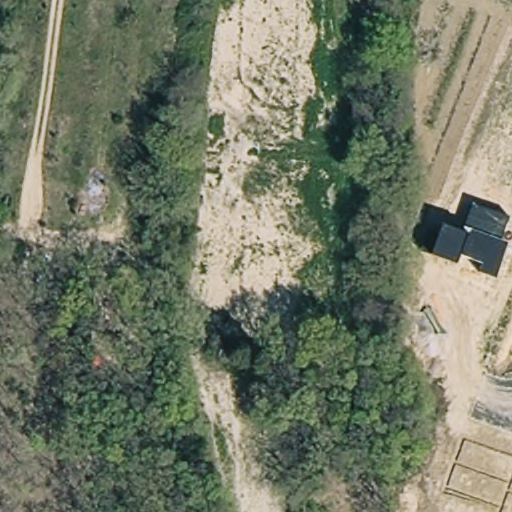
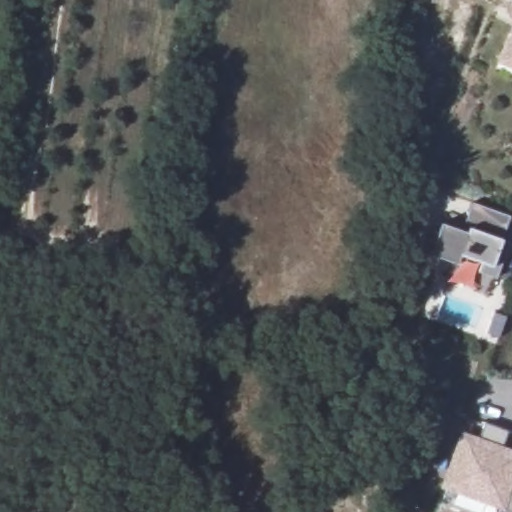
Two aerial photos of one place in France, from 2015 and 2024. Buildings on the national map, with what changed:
new [(495,64),(510,27),(512,28),(512,71),(495,64)]
unchanged [(510,221),(502,242),(510,245),(498,281),(480,275),(484,263),(462,252),(459,266),(433,257),(447,227),(462,232),(475,205),(510,221)]
new [(507,316),(499,338),(486,333),(494,312),(507,316)]
new [(459,432),(512,451),(512,512),(497,512),(497,510),(439,489),(459,432)]

